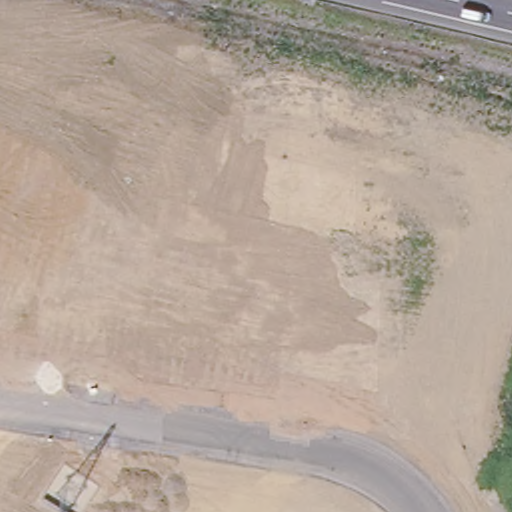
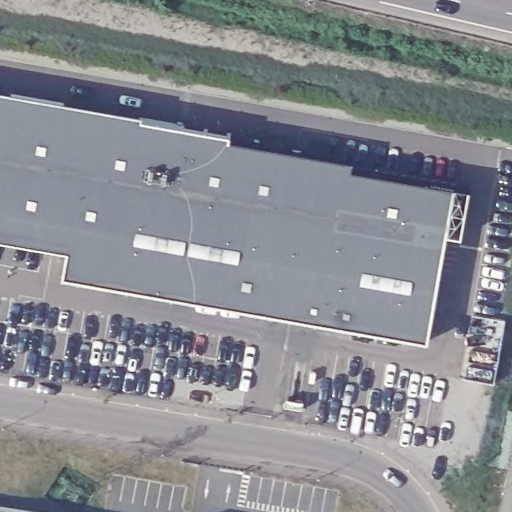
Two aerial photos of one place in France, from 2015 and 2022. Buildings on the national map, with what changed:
new [(143,111),(143,115),(231,130),(230,136),(353,156),(352,166),(471,186),(463,233),(445,230),(428,335),(64,272),(68,248),(0,236),(0,86),(143,111)]

